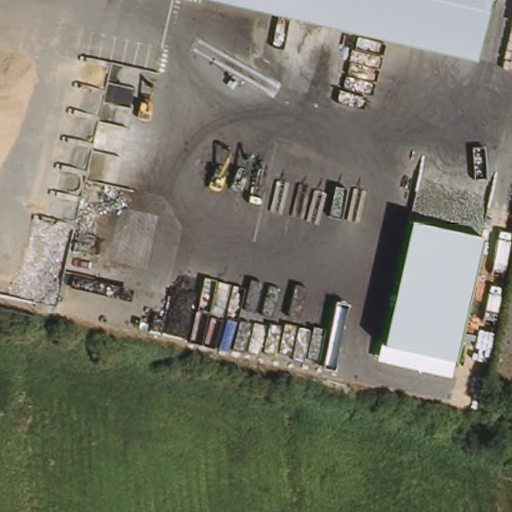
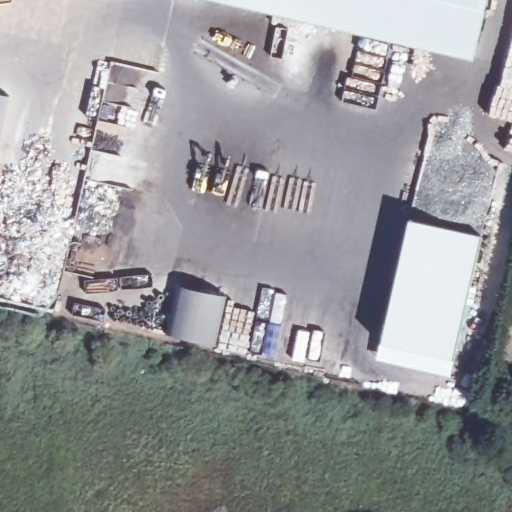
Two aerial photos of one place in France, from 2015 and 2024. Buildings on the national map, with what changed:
unchanged [(228,0),(277,0),(274,12),(228,0)]
unchanged [(277,0),(489,0),(474,63),(274,12),(277,0)]
new [(0,133),(0,95),(9,97),(0,133)]
unchanged [(404,228),(480,247),(452,370),(376,351),(404,228)]
new [(178,284),(227,294),(214,347),(166,334),(178,284)]

